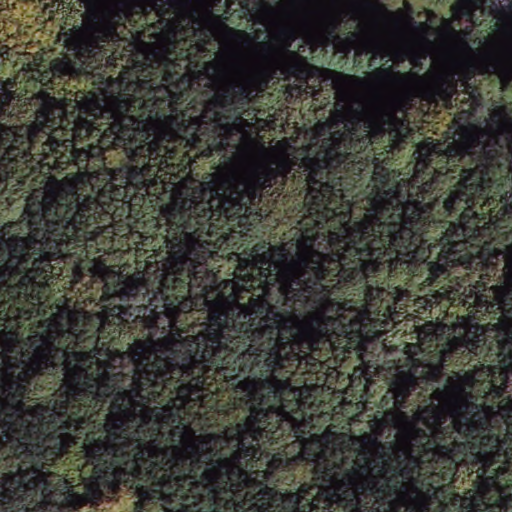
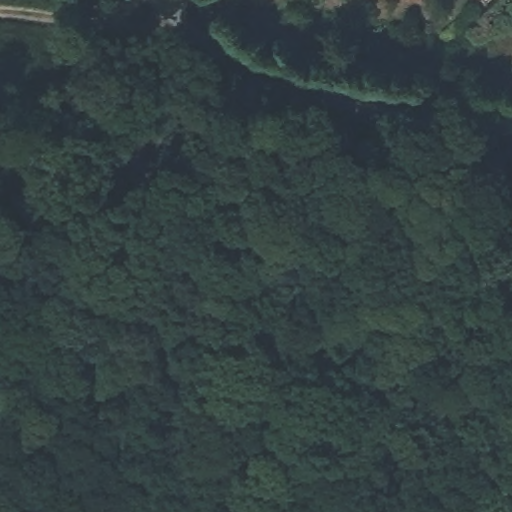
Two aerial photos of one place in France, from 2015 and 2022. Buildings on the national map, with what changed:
[]

